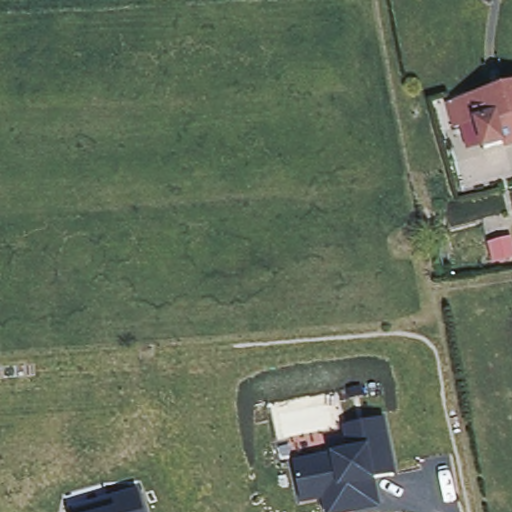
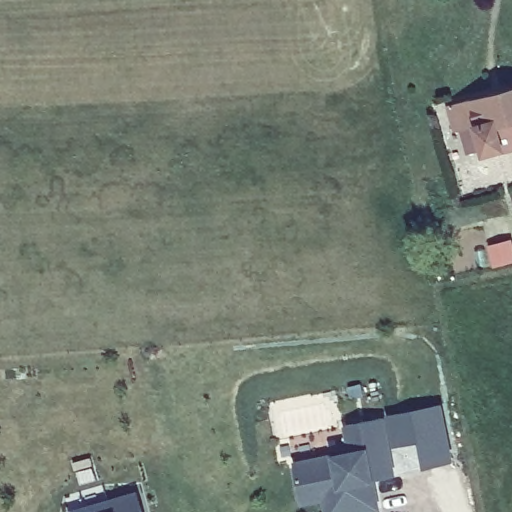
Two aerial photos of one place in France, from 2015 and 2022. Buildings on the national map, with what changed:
unchanged [(512,93),(512,145),(485,153),(470,105),(512,93)]
new [(455,460),(423,468),(418,443),(387,449),(381,422),(385,419),(385,415),(413,409),(442,404),(455,460)]
unchanged [(301,507),(300,498),(293,468),(350,456),(345,430),(381,422),(393,480),(373,484),(378,511),(373,512),(327,512),(325,502),(301,507)]
unchanged [(109,499),(135,493),(141,512),(111,512),(112,512),(109,499)]

